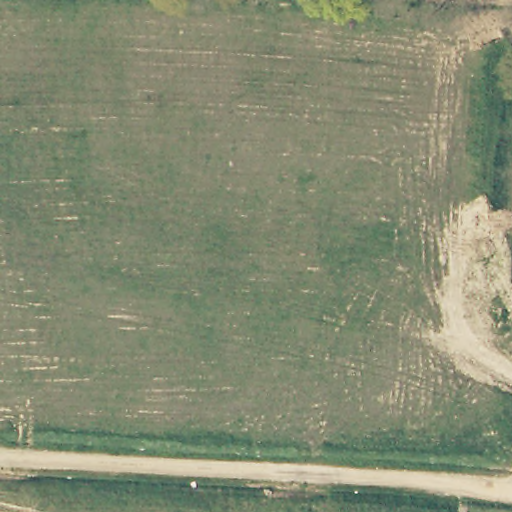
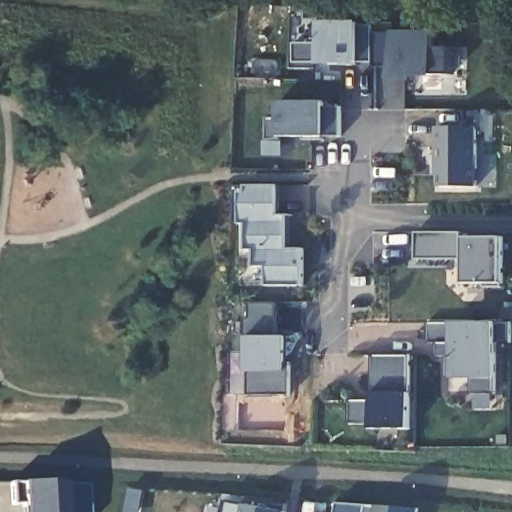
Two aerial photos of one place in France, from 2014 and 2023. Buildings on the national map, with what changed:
new [(360,18),(360,25),(374,26),(373,32),(392,34),(393,30),(435,32),(435,47),(452,49),(451,75),(435,73),(435,77),(390,79),(391,67),(372,66),(372,63),(317,67),(318,18),(360,18)]
new [(323,101),(323,106),(340,106),(340,135),(324,136),(324,140),(307,140),(307,137),(280,138),(279,140),(267,140),(268,119),(278,119),(279,102),(323,101)]
new [(478,187),(441,187),(440,173),(437,173),(437,127),(477,127),(478,187)]
new [(278,185),(278,215),(288,215),(288,249),(304,249),(303,285),(267,285),(267,267),(255,266),(255,250),(246,249),(246,223),(240,223),(239,192),(244,192),(245,185),(278,185)]
new [(503,283),(503,287),(486,287),(487,283),(466,283),(465,259),(417,259),(416,232),(462,232),(462,237),(465,238),(504,237),(503,283)]
new [(249,371),(246,371),(247,338),(244,337),(245,319),(250,318),(250,303),(276,303),(277,336),(287,336),(288,363),(291,363),(291,395),(248,395),(249,371)]
new [(451,323),(496,321),(496,324),(510,324),(511,342),(497,344),(495,393),(472,393),(472,378),(447,377),(447,355),(438,355),(437,342),(428,342),(429,323),(451,323)]
new [(410,356),(410,394),(411,429),(373,429),(373,424),(351,424),(351,401),(373,402),(373,392),(373,356),(410,356)]
new [(88,512),(22,512),(22,503),(12,504),(10,482),(20,483),(86,486),(88,512)]
new [(419,508),(418,512),(336,512),(337,503),(419,508)]
unchanged [(244,504),(285,512),(242,512),(244,504)]

